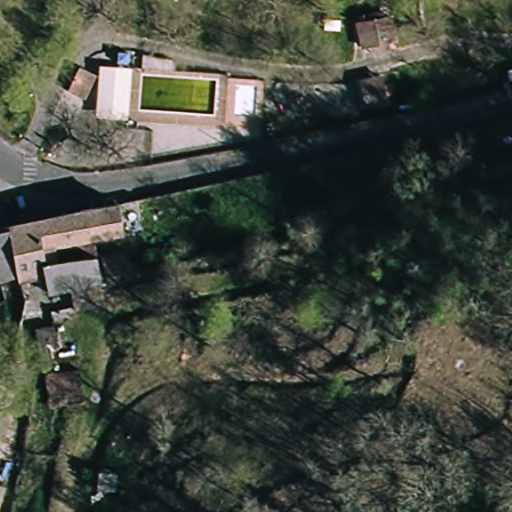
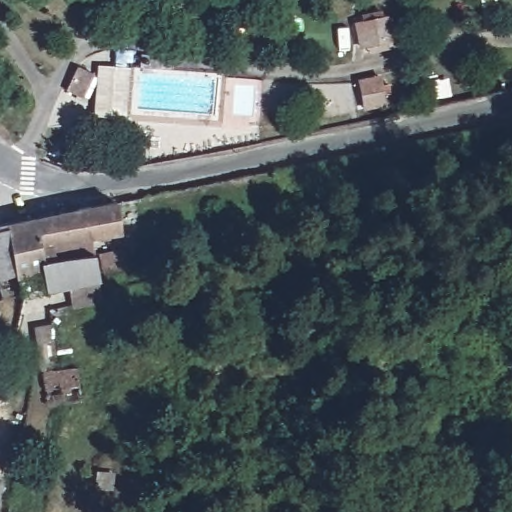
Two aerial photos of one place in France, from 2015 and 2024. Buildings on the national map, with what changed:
unchanged [(353,27),(389,23),(393,50),(356,55),(353,27)]
unchanged [(98,125),(99,80),(100,65),(131,68),(130,126),(98,125)]
unchanged [(82,70),(99,80),(86,102),(69,92),(82,70)]
unchanged [(367,112),(362,81),(382,77),(388,106),(367,112)]
unchanged [(115,202),(125,233),(95,240),(98,259),(125,252),(130,274),(104,279),(108,308),(73,312),(78,356),(60,357),(60,372),(82,371),(82,401),(46,403),(46,375),(23,372),(24,300),(18,278),(0,282),(0,229),(115,202)]
unchanged [(5,486),(0,500),(0,485),(5,486)]

